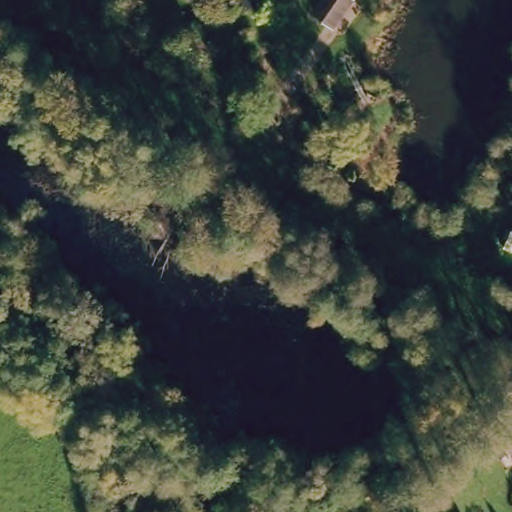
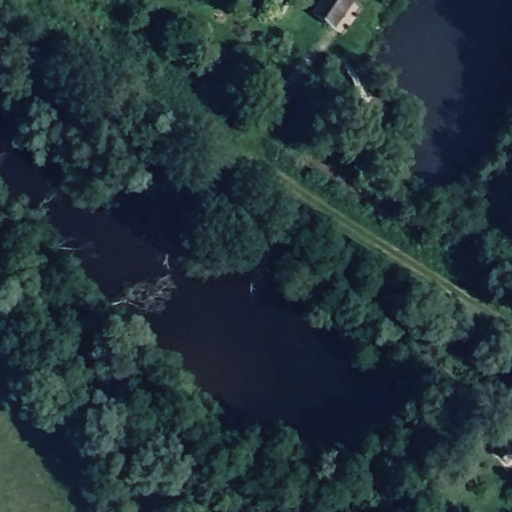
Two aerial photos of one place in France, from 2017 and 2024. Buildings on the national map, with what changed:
unchanged [(354,0),(334,30),(310,12),(318,0),(354,0)]

